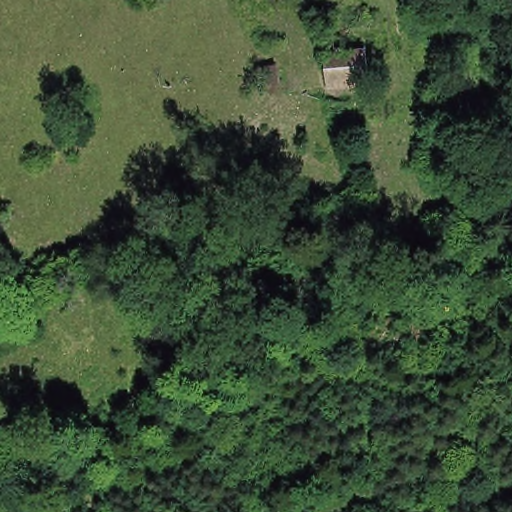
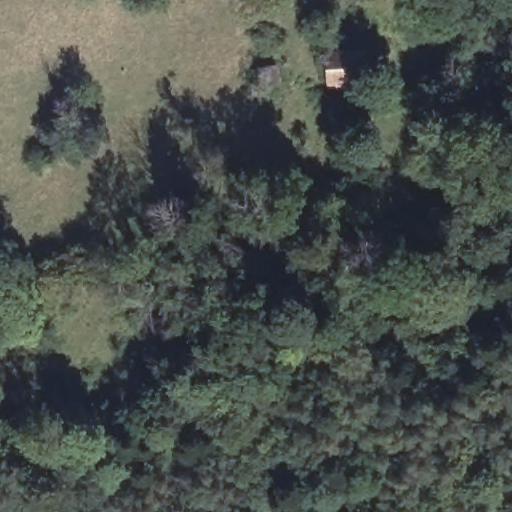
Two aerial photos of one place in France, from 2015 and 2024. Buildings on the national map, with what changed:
unchanged [(326,80),(324,48),(364,45),(366,76),(326,80)]

